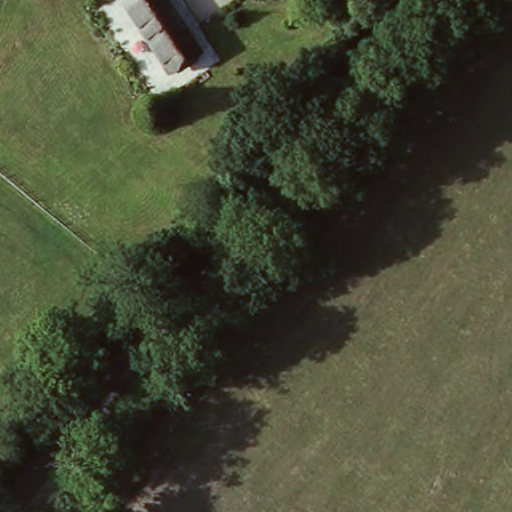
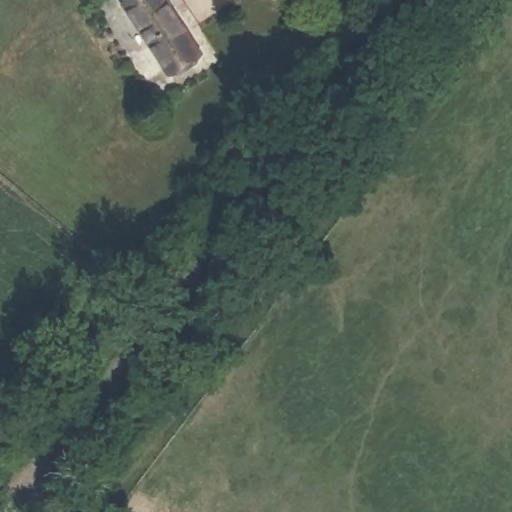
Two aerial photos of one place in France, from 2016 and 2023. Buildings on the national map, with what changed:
unchanged [(203,55),(176,74),(123,3),(127,0),(161,0),(203,55)]

